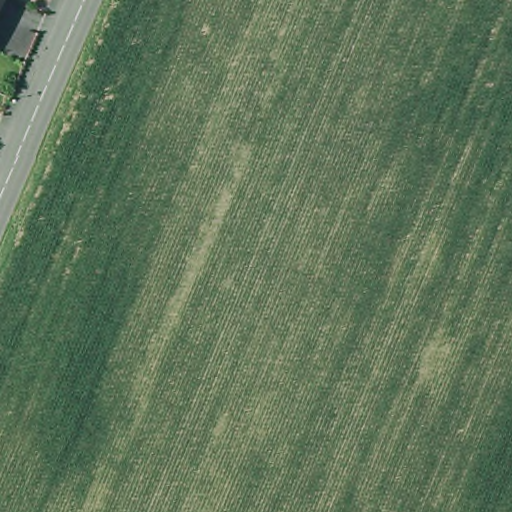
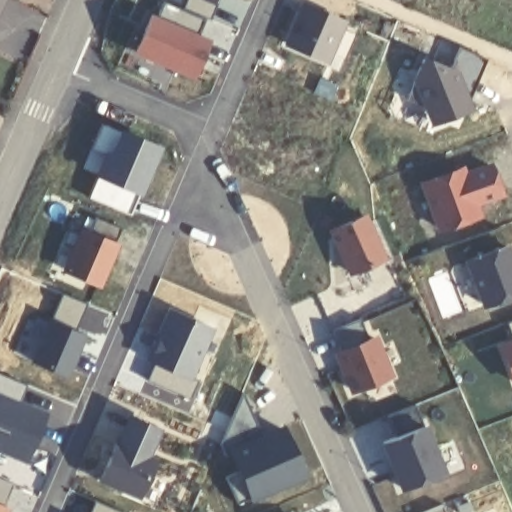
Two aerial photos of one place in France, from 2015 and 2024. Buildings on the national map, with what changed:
unchanged [(0,18),(0,0),(9,0),(0,18)]
new [(208,22),(201,36),(213,41),(198,84),(134,57),(151,16),(164,3),(184,9),(187,0),(217,0),(208,22)]
new [(348,17),(332,61),(283,43),(301,0),(308,0),(348,17)]
new [(487,56),(470,97),(477,107),(434,127),(427,107),(407,98),(439,38),(487,56)]
new [(101,120),(163,146),(143,195),(138,193),(95,174),(82,168),(101,120)]
new [(470,167),(496,159),(508,195),(486,203),(490,215),(439,234),(418,180),(468,160),(470,167)]
new [(95,174),(138,193),(128,213),(88,196),(95,174)]
new [(390,256),(349,274),(328,228),(369,209),(390,256)]
new [(121,239),(104,285),(64,269),(81,224),(121,239)]
new [(512,298),(486,308),(464,258),(509,242),(512,250),(512,298)]
new [(86,334),(68,376),(31,361),(60,292),(86,303),(75,329),(86,334)]
new [(216,326),(194,377),(201,380),(194,399),(148,378),(155,362),(146,357),(169,303),(216,326)]
new [(511,336),(506,322),(512,320),(512,381),(497,343),(511,336)]
new [(396,376),(353,394),(334,350),(376,331),(396,376)]
new [(27,386),(20,403),(46,415),(26,465),(0,453),(0,375),(27,386)]
new [(263,434),(284,426),(304,472),(238,500),(227,474),(242,470),(236,450),(224,453),(219,443),(243,393),(263,434)]
new [(164,424),(153,456),(158,460),(142,500),(98,481),(128,409),(164,424)]
new [(450,470),(402,489),(379,438),(426,418),(450,470)]
new [(8,502),(11,504),(9,512),(0,512),(0,476),(15,483),(8,502)]
new [(91,512),(94,500),(128,512),(91,512)]

